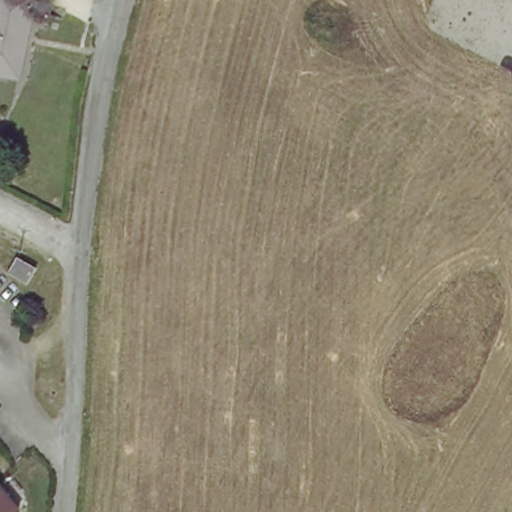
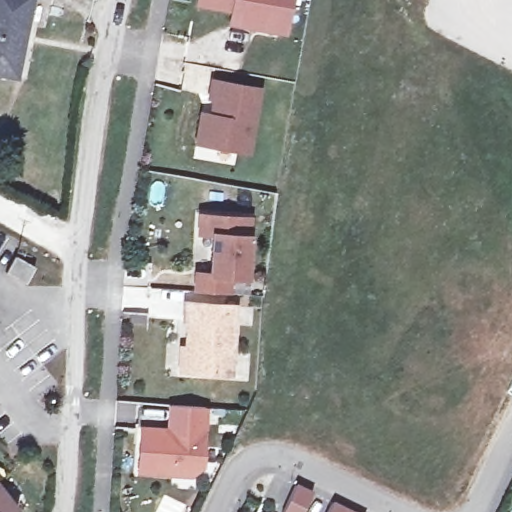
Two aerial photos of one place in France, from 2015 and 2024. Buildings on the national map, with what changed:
unchanged [(18,80),(0,77),(0,0),(31,0),(18,80)]
new [(251,21),(233,17),(235,5),(207,0),(292,0),(289,16),(287,27),(251,21)]
new [(215,110),(218,94),(213,93),(215,76),(262,84),(251,147),(209,140),(200,139),(205,109),(215,110)]
new [(205,268),(219,270),(220,251),(222,230),(208,229),(209,210),(257,214),(253,273),(237,272),(236,289),(204,286),(205,268)]
unchanged [(17,257),(35,266),(26,282),(8,273),(17,257)]
new [(195,344),(197,316),(192,315),(193,298),(243,302),(238,370),(194,367),(188,367),(190,343),(195,344)]
new [(174,471),(141,468),(144,425),(171,427),(173,402),(208,405),(204,463),(193,472),(174,471)]
new [(299,482),(316,490),(306,512),(286,512),(285,511),(299,482)]
new [(360,512),(330,512),(336,500),(360,512)]
unchanged [(0,512),(0,504),(6,512),(0,512)]

